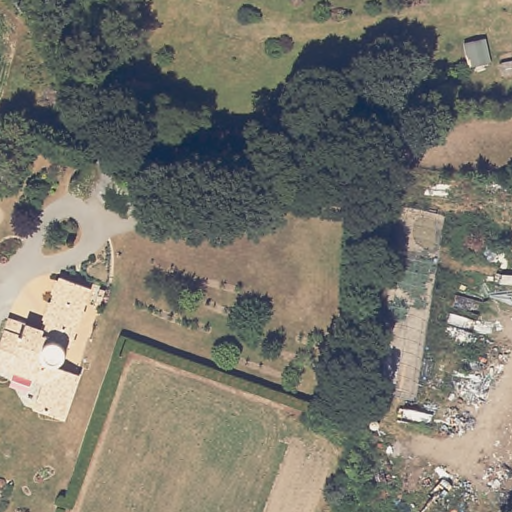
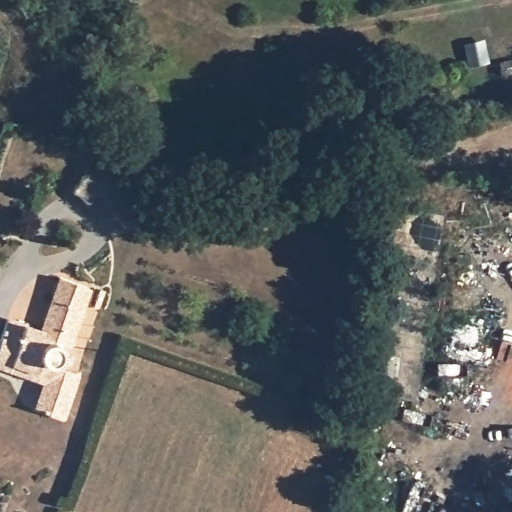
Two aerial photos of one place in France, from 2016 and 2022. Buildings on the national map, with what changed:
unchanged [(97,159),(141,198),(128,212),(85,172),(97,159)]
unchanged [(59,283),(90,294),(70,350),(64,348),(62,363),(55,370),(76,380),(64,423),(35,413),(44,387),(0,371),(0,348),(9,323),(39,335),(59,283)]

